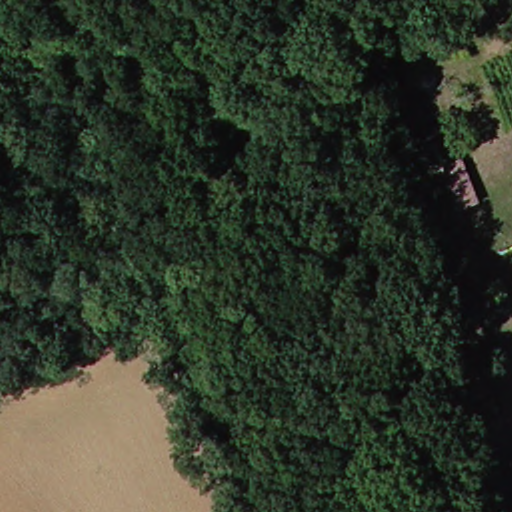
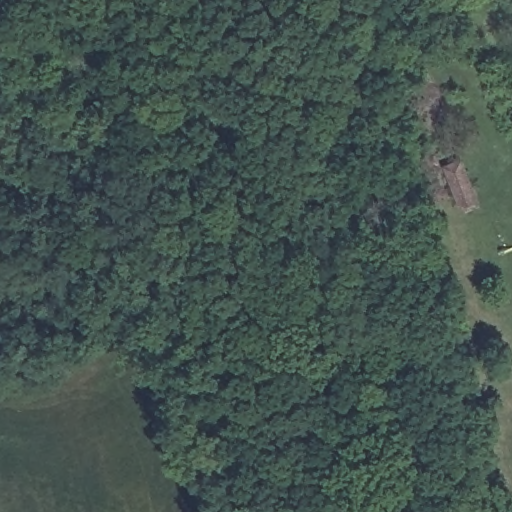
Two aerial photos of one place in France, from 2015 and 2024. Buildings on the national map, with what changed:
unchanged [(482,208),(462,217),(444,171),(465,162),(482,208)]

